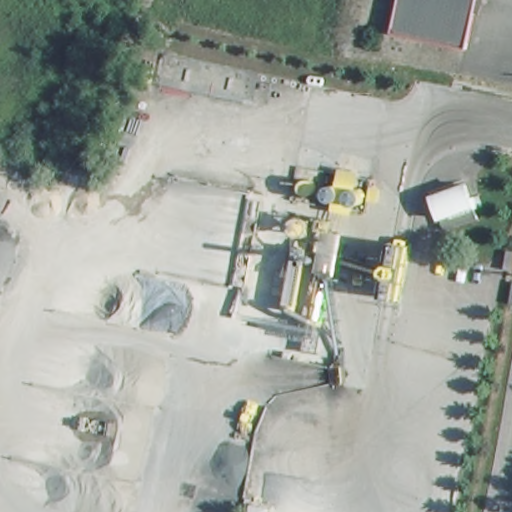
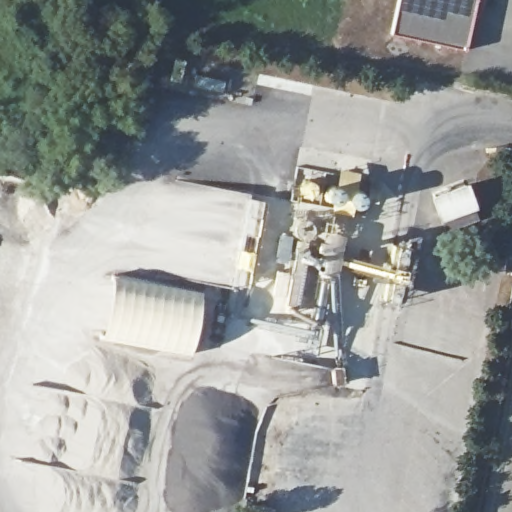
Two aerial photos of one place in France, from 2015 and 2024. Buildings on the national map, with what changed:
unchanged [(402,33),(408,0),(487,0),(477,49),(402,33)]
new [(463,184),(468,197),(471,196),(476,207),(472,208),(476,217),(444,230),(431,196),(463,184)]
new [(112,272),(204,290),(191,357),(100,340),(112,272)]

